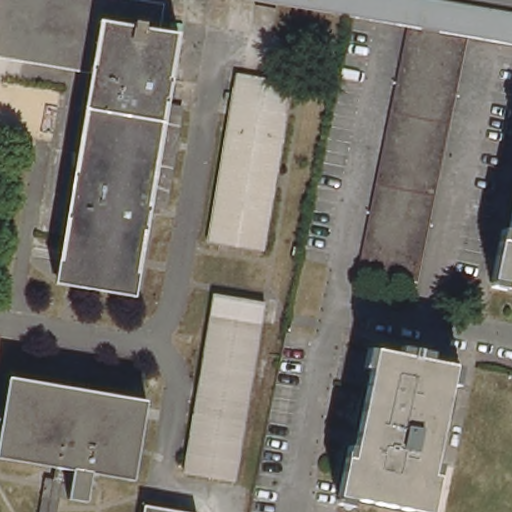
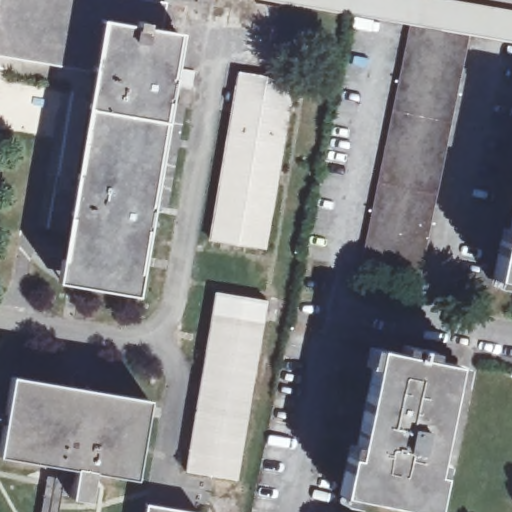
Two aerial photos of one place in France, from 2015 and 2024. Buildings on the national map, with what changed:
unchanged [(118,0),(158,7),(154,31),(100,24),(92,69),(0,52),(0,0),(118,0)]
unchanged [(512,41),(470,34),(411,24),(355,14),(272,0),(448,0),(512,11),(512,41)]
unchanged [(154,31),(173,34),(161,99),(176,103),(166,158),(152,155),(128,294),(55,280),(92,69),(100,24),(154,31)]
unchanged [(470,34),(421,279),(362,267),(411,24),(470,34)]
unchanged [(266,250),(213,240),(244,72),(296,82),(266,250)]
unchanged [(505,239),(511,240),(512,236),(512,279),(496,275),(505,239)]
unchanged [(238,478),(187,469),(219,292),(269,300),(238,478)]
unchanged [(438,471),(445,473),(438,509),(343,491),(351,453),(358,454),(380,346),(416,353),(418,344),(425,346),(423,354),(460,362),(438,471)]
unchanged [(139,479),(96,472),(91,499),(71,496),(76,468),(1,454),(16,374),(153,399),(139,479)]
unchanged [(148,503),(201,512),(146,512),(148,503)]

